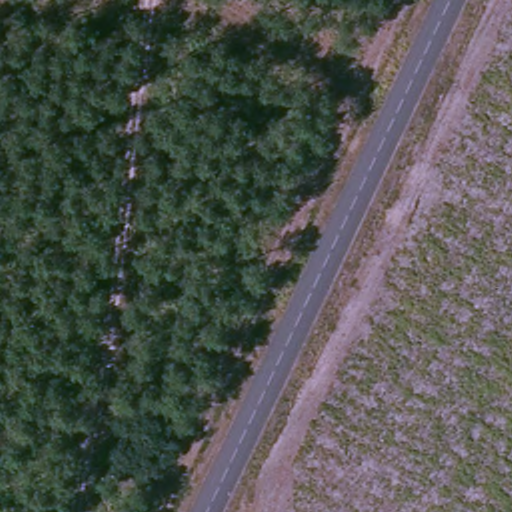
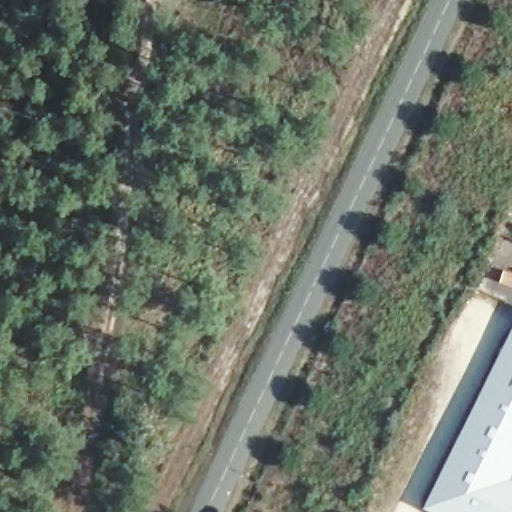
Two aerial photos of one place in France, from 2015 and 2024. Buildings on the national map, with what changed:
new [(423,511),(512,331),(512,479),(511,482),(512,482),(512,512),(427,512),(423,511)]

